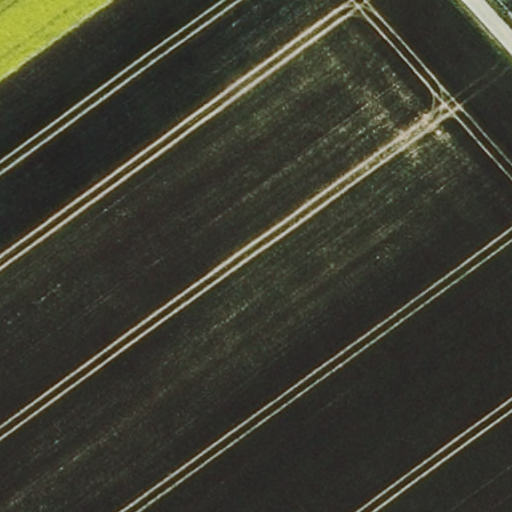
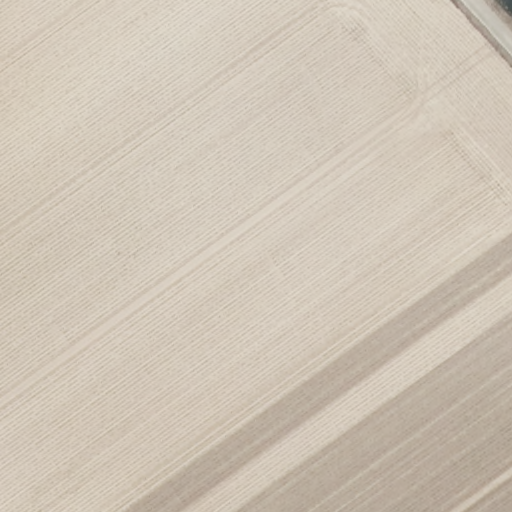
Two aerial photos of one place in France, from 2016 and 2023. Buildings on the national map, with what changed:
[]

